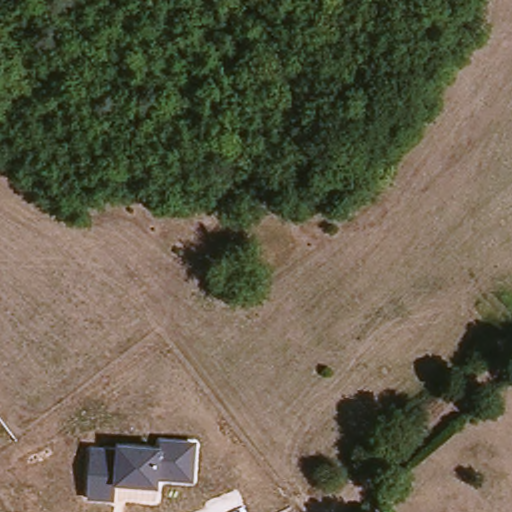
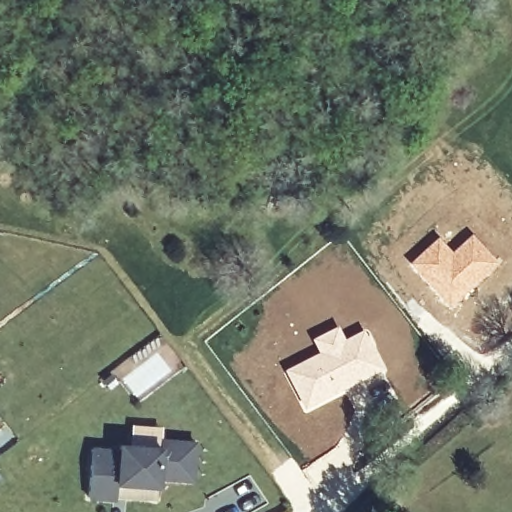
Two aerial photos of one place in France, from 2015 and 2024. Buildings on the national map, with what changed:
new [(439,237),(453,252),(472,234),(501,263),(452,309),(410,265),(439,237)]
new [(317,353),(312,340),(338,326),(347,339),(367,329),(387,370),(305,413),(283,371),(317,353)]
unchanged [(118,448),(119,445),(161,447),(161,439),(196,442),(193,482),(160,480),(159,490),(118,487),(116,503),(87,500),(92,446),(118,448)]

